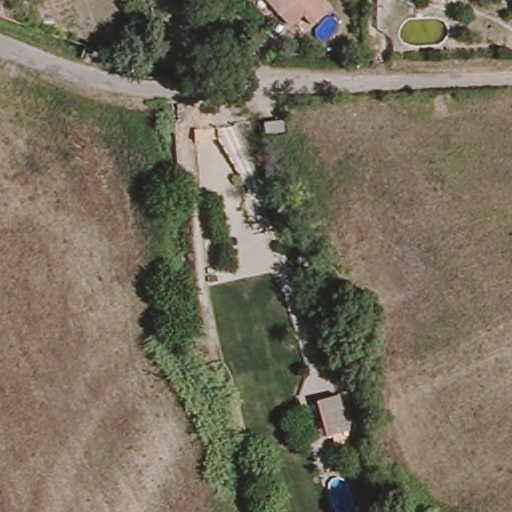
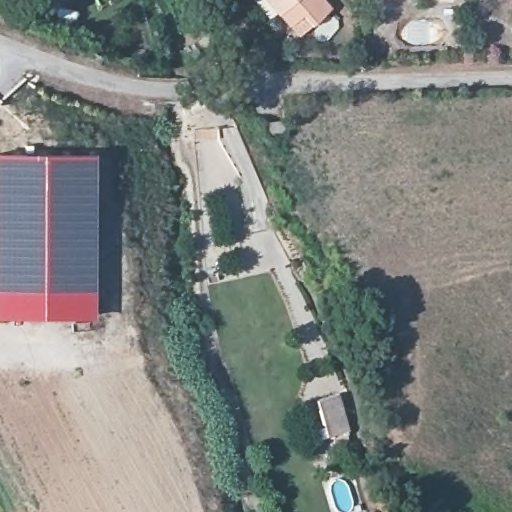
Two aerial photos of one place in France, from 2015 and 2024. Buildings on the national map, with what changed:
unchanged [(310,28),(299,18),(287,29),(261,0),(321,0),(330,9),(310,28)]
unchanged [(268,46),(248,25),(260,12),(281,34),(268,46)]
unchanged [(278,123),(278,144),(263,144),(255,145),(250,122),(254,122),(278,123)]
unchanged [(214,131),(214,141),(195,142),(194,131),(214,131)]
new [(0,154),(94,155),(92,319),(0,319),(0,154)]
unchanged [(339,397),(349,436),(320,442),(309,405),(339,397)]

